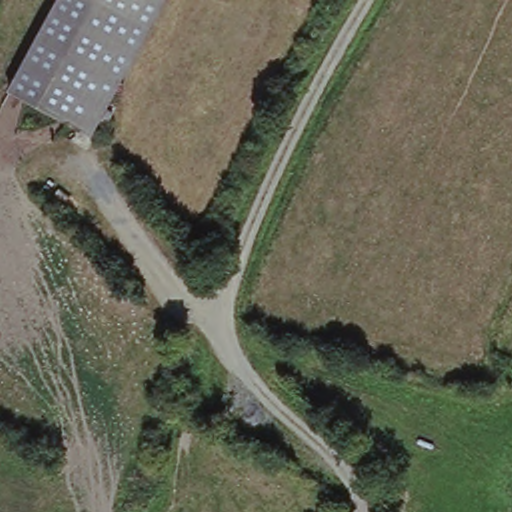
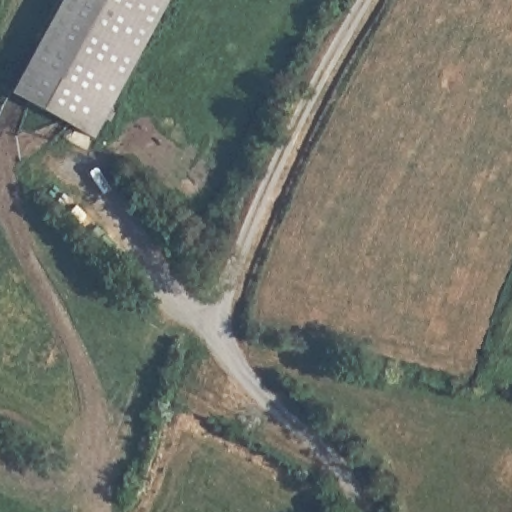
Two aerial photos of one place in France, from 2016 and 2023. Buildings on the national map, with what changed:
unchanged [(4,85),(52,0),(166,0),(90,136),(4,85)]

